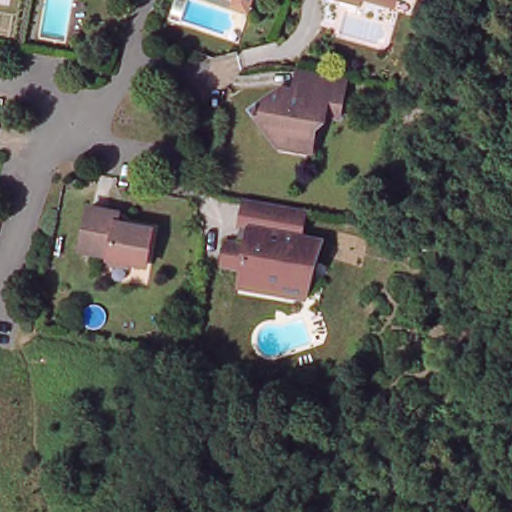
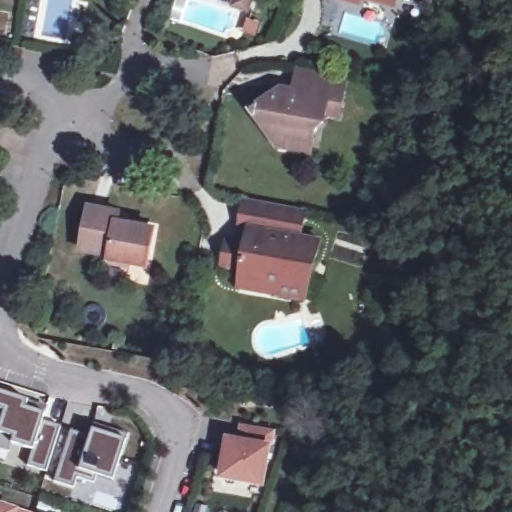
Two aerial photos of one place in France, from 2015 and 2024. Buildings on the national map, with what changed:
unchanged [(219,0),(249,0),(245,9),(219,0)]
unchanged [(360,4),(348,0),(361,0),(360,4)]
unchanged [(375,0),(396,0),(395,6),(388,4),(375,0)]
unchanged [(278,151),(257,119),(256,120),(250,112),(257,107),(260,110),(277,96),(295,99),(300,75),(306,76),(344,83),(348,84),(341,117),(340,124),(325,122),(322,130),(315,127),(312,147),(311,158),(278,151)]
unchanged [(241,283),(243,275),(224,271),(228,247),(237,249),(240,232),(245,206),(305,217),(299,245),(320,249),(307,307),(283,302),(239,293),(241,283)]
unchanged [(145,266),(108,259),(110,256),(80,250),(89,207),(119,213),(117,222),(153,229),(145,266)]
new [(33,401),(52,407),(50,415),(68,420),(54,466),(35,459),(40,444),(18,437),(20,432),(0,425),(0,383),(35,395),(33,401)]
new [(78,424),(97,430),(100,423),(115,427),(116,422),(135,428),(121,474),(104,469),(102,477),(85,471),(81,482),(61,476),(78,424)]
new [(231,438),(242,440),(245,425),(275,430),(265,483),(224,476),(231,438)]
new [(0,512),(0,506),(18,512),(0,512)]

